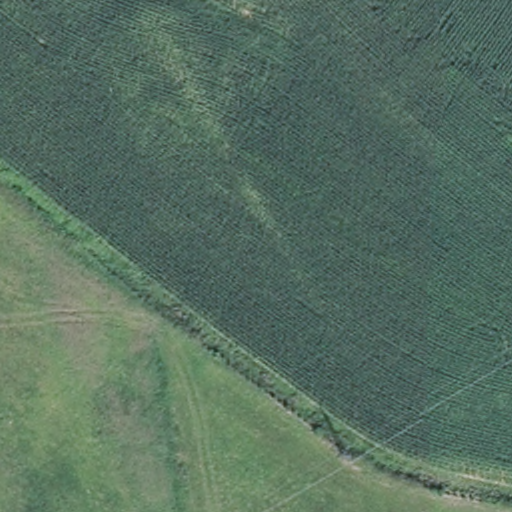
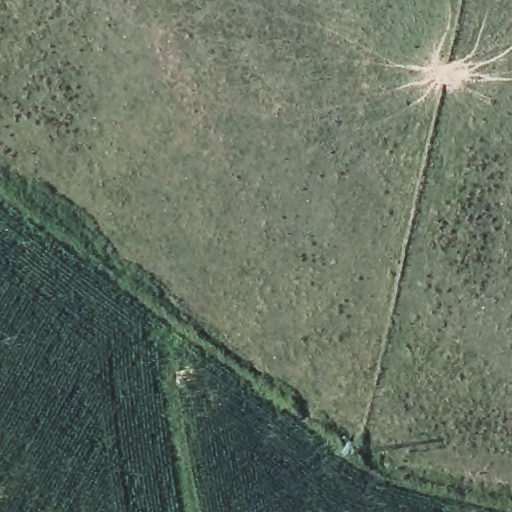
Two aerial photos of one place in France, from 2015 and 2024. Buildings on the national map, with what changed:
[]

